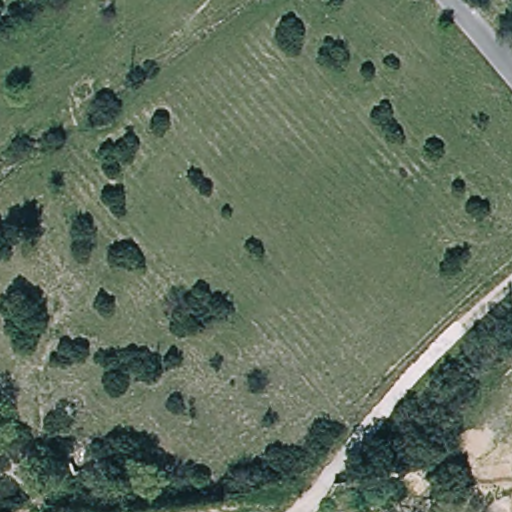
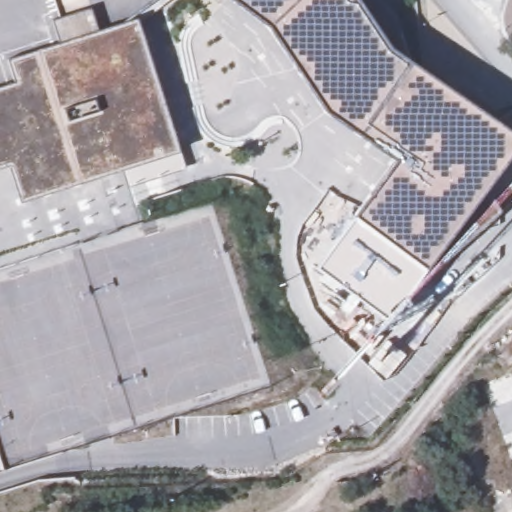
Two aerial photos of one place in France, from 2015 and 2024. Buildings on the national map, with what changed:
new [(412,63),(512,133),(512,153),(485,190),(501,212),(430,276),(425,272),(402,256),(374,289),(338,261),(365,228),(352,217),(394,162),(323,114),(267,29),(228,0),(381,0),(394,15),(412,63)]
new [(15,84),(8,61),(59,45),(51,22),(90,10),(98,32),(137,20),(180,152),(186,169),(129,188),(124,171),(21,205),(9,166),(0,169),(0,89),(15,84)]

